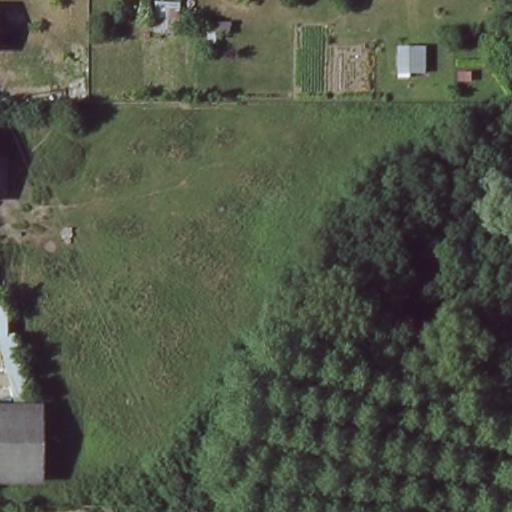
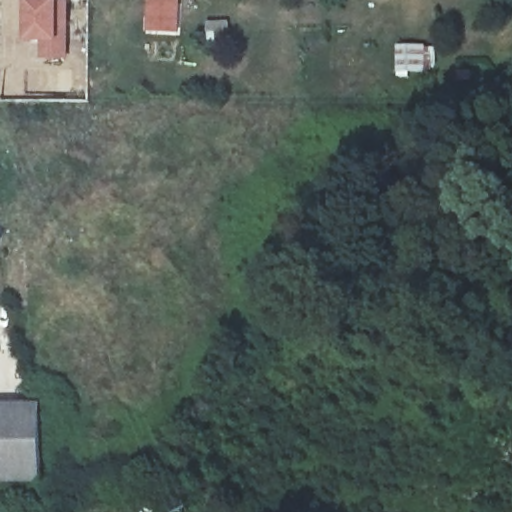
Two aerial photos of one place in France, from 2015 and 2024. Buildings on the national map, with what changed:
new [(27,0),(72,0),(72,16),(70,16),(68,60),(40,60),(40,45),(27,45),(27,0)]
unchanged [(173,33),(148,33),(150,0),(176,0),(173,33)]
unchanged [(10,334),(21,335),(40,388),(42,400),(19,401),(0,342),(0,306),(10,306),(10,334)]
unchanged [(42,400),(44,471),(0,472),(0,401),(19,401),(42,400)]

